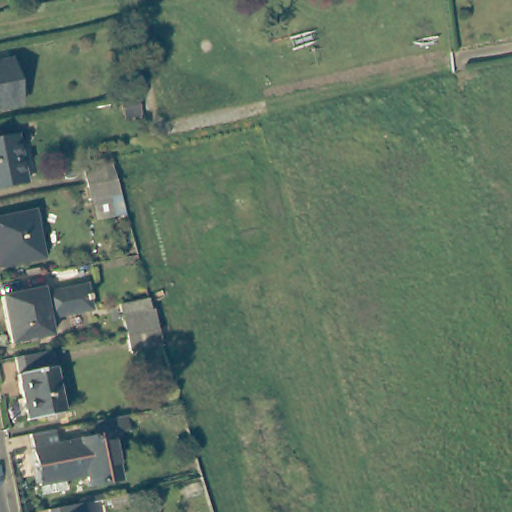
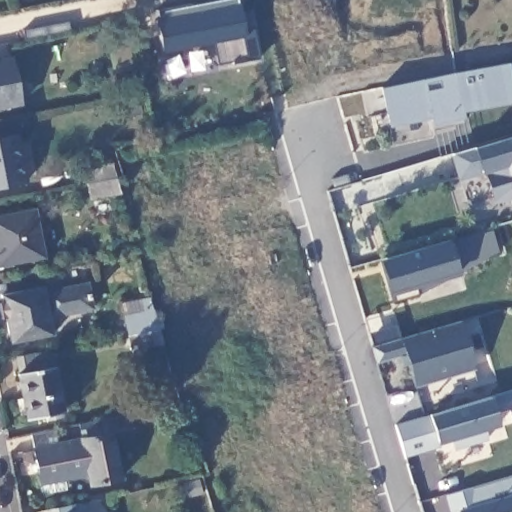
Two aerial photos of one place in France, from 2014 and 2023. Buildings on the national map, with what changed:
new [(249,26),(257,61),(210,71),(205,42),(154,52),(146,12),(216,0),(230,0),(234,30),(249,26)]
unchanged [(0,60),(10,58),(19,102),(0,106),(0,60)]
new [(507,65),(512,94),(512,103),(461,113),(463,120),(430,126),(428,119),(386,127),(379,87),(507,65)]
unchanged [(0,187),(0,139),(21,135),(29,182),(0,187)]
new [(493,205),(482,174),(458,180),(450,155),(476,147),(512,136),(512,200),(493,205)]
unchanged [(90,210),(88,194),(84,179),(111,172),(116,189),(120,204),(90,210)]
unchanged [(0,265),(0,217),(35,210),(44,256),(0,265)]
new [(499,252),(460,275),(391,304),(389,293),(378,260),(449,241),(492,229),(499,252)]
unchanged [(60,286),(82,282),(89,322),(67,326),(13,336),(5,296),(60,286)]
unchanged [(128,313),(158,307),(160,322),(164,337),(130,343),(128,330),(130,328),(128,313)]
new [(476,370),(414,387),(406,352),(377,362),(368,333),(397,324),(401,337),(459,320),(476,370)]
unchanged [(61,411),(28,418),(19,374),(54,367),(61,411)]
new [(510,427),(506,410),(497,414),(502,428),(487,433),(488,440),(454,450),(452,443),(440,446),(404,458),(395,426),(429,415),(489,398),(512,391),(512,427),(510,427)]
unchanged [(119,479),(90,485),(88,473),(41,482),(34,447),(111,433),(119,479)]
new [(444,495),(512,476),(512,512),(449,512),(444,495)]
unchanged [(84,512),(61,512),(83,507),(84,512)]

